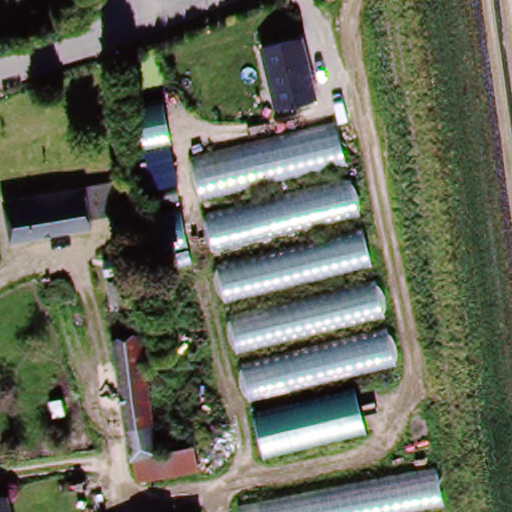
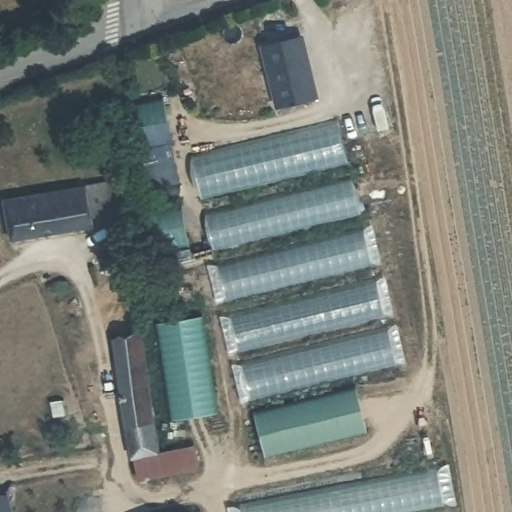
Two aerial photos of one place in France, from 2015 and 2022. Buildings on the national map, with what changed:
unchanged [(310,32),(326,95),(282,104),(268,43),(310,32)]
unchanged [(153,188),(135,90),(162,85),(179,182),(153,188)]
unchanged [(336,122),(353,175),(203,213),(191,160),(336,122)]
unchanged [(353,175),(402,364),(247,401),(203,213),(353,175)]
unchanged [(2,233),(1,198),(82,194),(109,193),(110,217),(84,218),(84,229),(2,233)]
new [(160,252),(151,213),(182,208),(190,248),(160,252)]
unchanged [(118,308),(115,283),(133,281),(137,306),(118,308)]
new [(202,317),(218,412),(172,421),(157,323),(202,317)]
unchanged [(121,358),(119,339),(124,334),(141,332),(145,336),(147,355),(155,451),(128,454),(121,358)]
unchanged [(357,393),(366,432),(265,455),(256,415),(357,393)]
unchanged [(186,448),(188,471),(129,475),(128,454),(155,451),(186,448)]
unchanged [(444,503),(397,512),(242,512),(241,503),(437,467),(444,503)]
unchanged [(2,500),(4,512),(0,512),(0,500),(2,500)]

